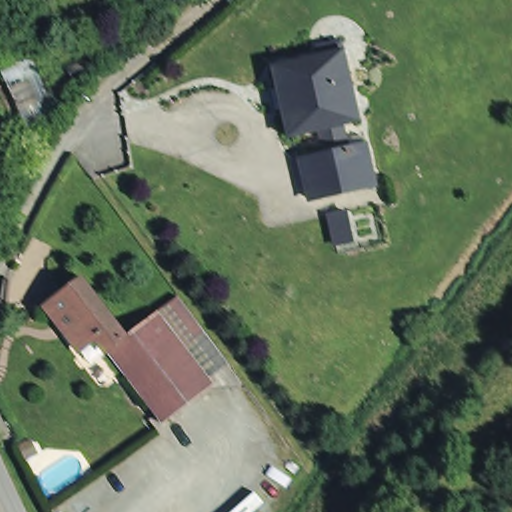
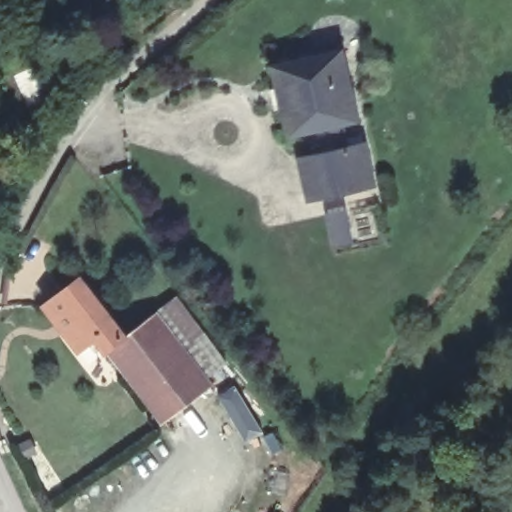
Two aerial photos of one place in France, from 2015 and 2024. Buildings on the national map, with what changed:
unchanged [(270,63),(342,47),(358,121),(286,137),(270,63)]
unchanged [(60,110),(22,128),(0,81),(0,72),(35,55),(60,110)]
unchanged [(298,156),(367,139),(377,185),(307,201),(298,156)]
unchanged [(327,213),(347,210),(353,240),(330,246),(327,213)]
unchanged [(160,429),(106,356),(97,343),(93,346),(73,360),(59,342),(52,334),(38,315),(76,286),(107,327),(120,345),(155,318),(175,303),(193,328),(174,343),(210,391),(160,429)]

